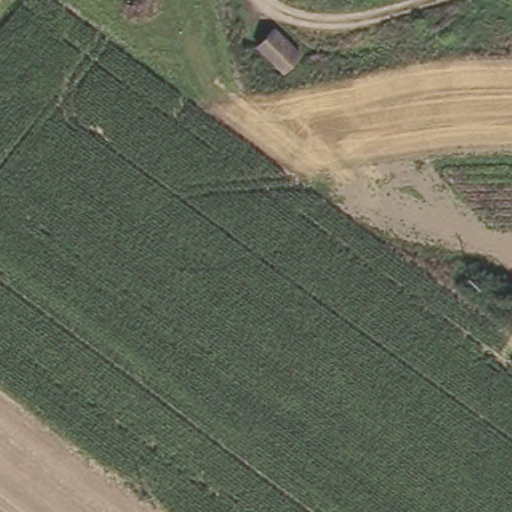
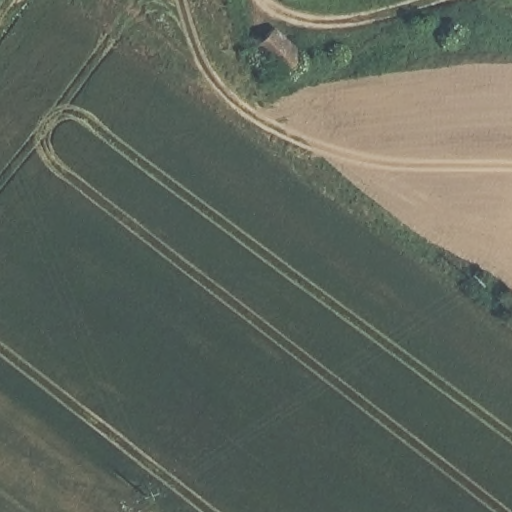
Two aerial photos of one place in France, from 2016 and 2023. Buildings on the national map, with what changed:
unchanged [(271,39),(288,30),(299,35),(314,58),(297,70),(271,39)]

